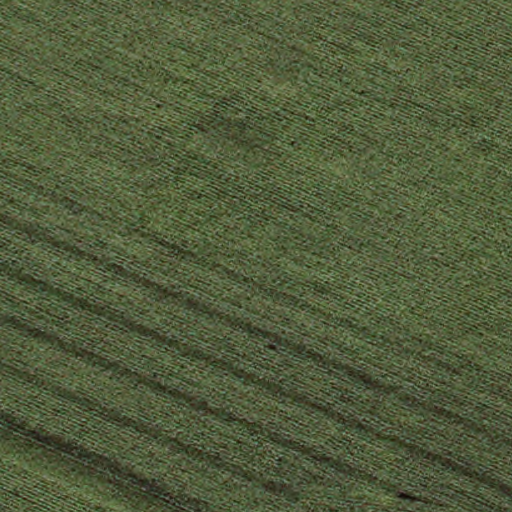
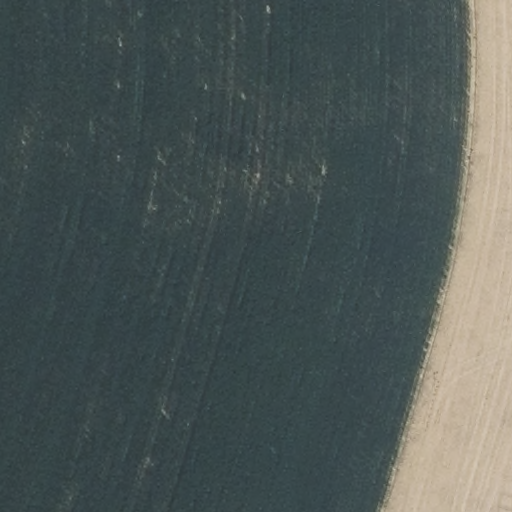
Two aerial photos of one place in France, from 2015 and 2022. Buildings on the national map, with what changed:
[]

